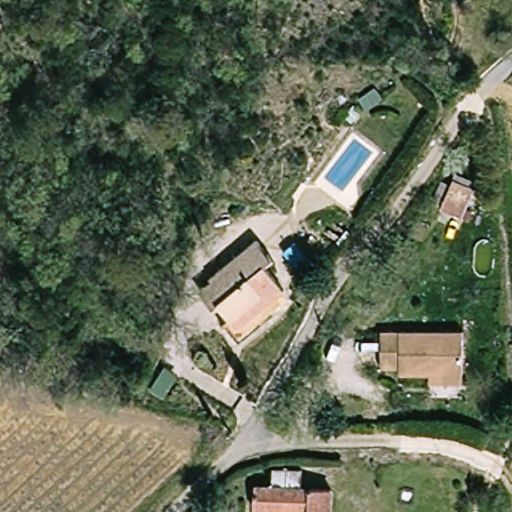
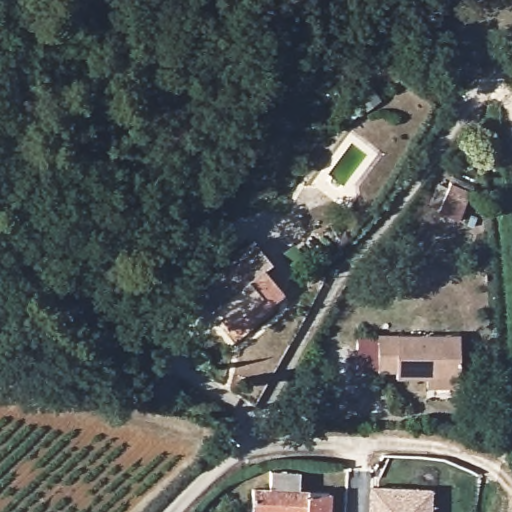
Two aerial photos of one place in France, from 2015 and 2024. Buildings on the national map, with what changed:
unchanged [(473,204),(458,238),(434,227),(449,194),(473,204)]
unchanged [(228,317),(219,306),(211,313),(197,296),(211,285),(207,281),(254,244),(268,262),(261,267),(280,291),(267,302),(263,297),(250,307),(232,322),(228,317)]
unchanged [(460,383),(395,384),(395,374),(375,374),(374,337),(459,336),(460,383)]
unchanged [(255,512),(256,492),(271,492),(271,469),(301,470),(300,493),(332,494),(331,512),(255,512)]
new [(432,489),(431,512),(369,512),(369,487),(432,489)]

